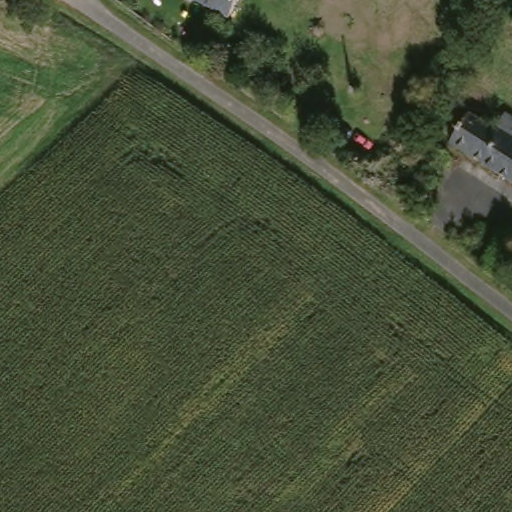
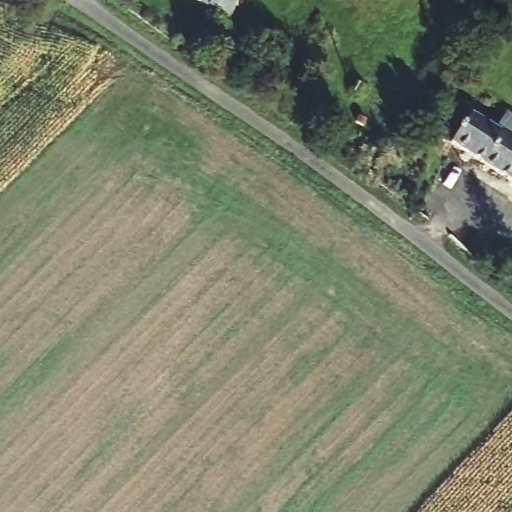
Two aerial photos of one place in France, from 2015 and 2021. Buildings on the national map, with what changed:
unchanged [(216,12),(196,0),(235,0),(226,17),(216,12)]
unchanged [(472,109),(497,125),(506,111),(512,114),(512,179),(451,140),(472,109)]

